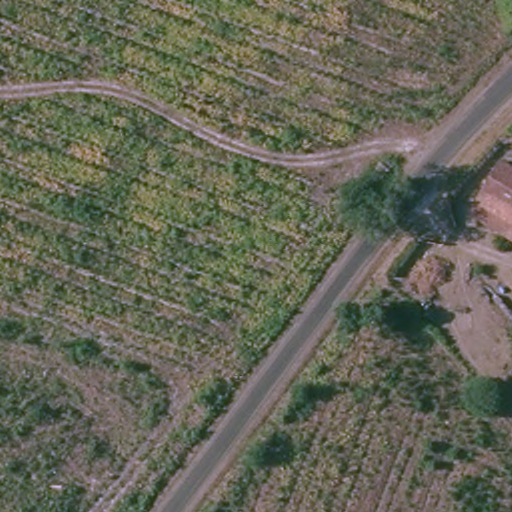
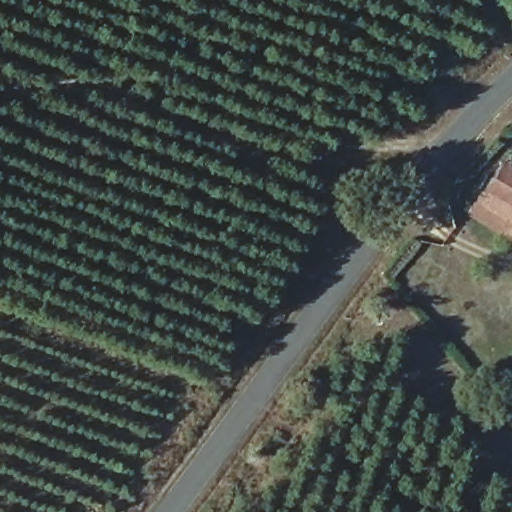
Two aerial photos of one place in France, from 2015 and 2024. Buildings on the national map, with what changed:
unchanged [(473,216),(502,165),(512,170),(512,238),(473,216)]

